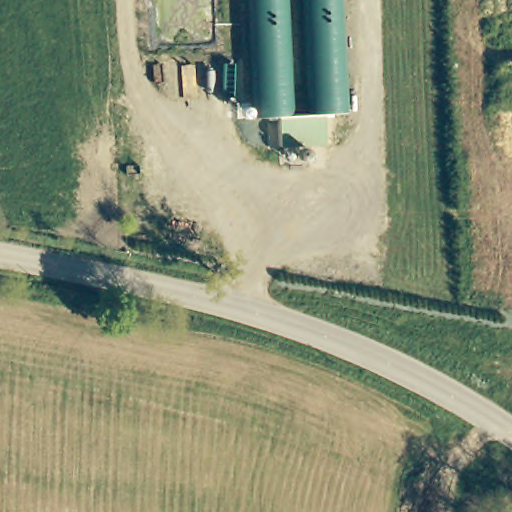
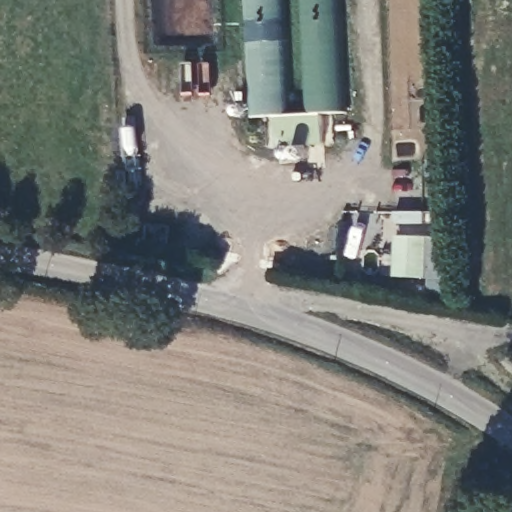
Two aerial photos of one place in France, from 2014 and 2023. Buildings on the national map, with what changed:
unchanged [(351,119),(325,120),(327,150),(282,153),(280,123),(255,125),(248,0),(289,0),(295,122),(310,121),(304,0),(344,0),(351,119)]
new [(450,237),(449,257),(427,256),(426,279),(392,277),(395,235),(450,237)]

